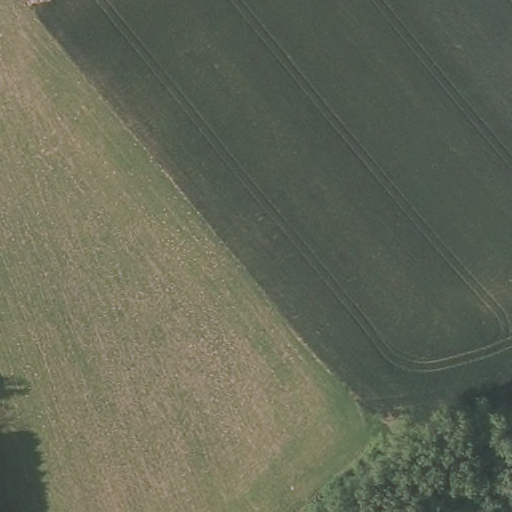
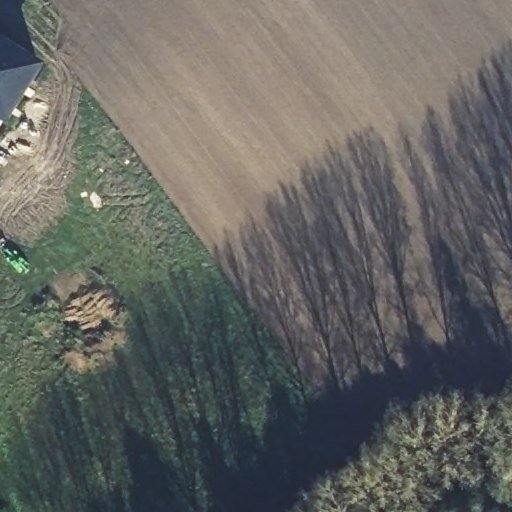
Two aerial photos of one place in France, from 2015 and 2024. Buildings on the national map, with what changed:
new [(45,61),(7,122),(0,117),(0,34),(45,61)]

